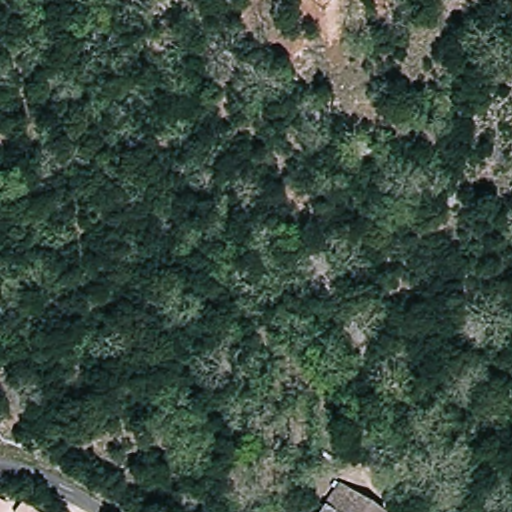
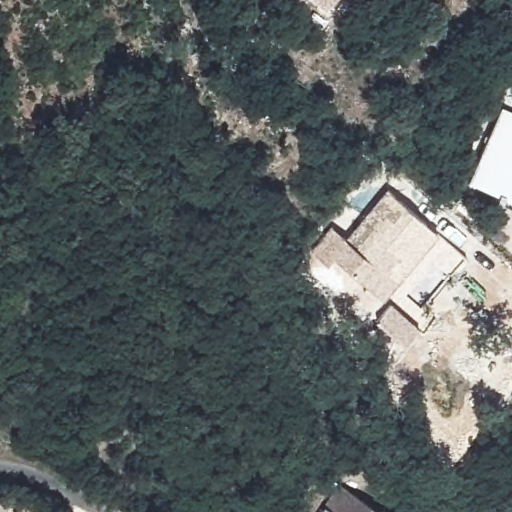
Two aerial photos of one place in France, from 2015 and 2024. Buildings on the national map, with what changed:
new [(318,24),(290,0),(338,0),(318,24)]
new [(512,113),(512,191),(507,203),(465,183),(500,108),(512,113)]
new [(383,300),(334,258),(328,265),(310,250),(331,226),(345,238),(385,190),(439,235),(383,300)]
unchanged [(385,512),(320,512),(341,483),(385,512)]

